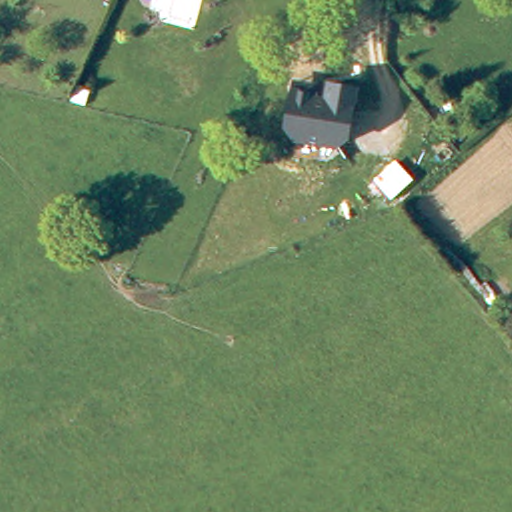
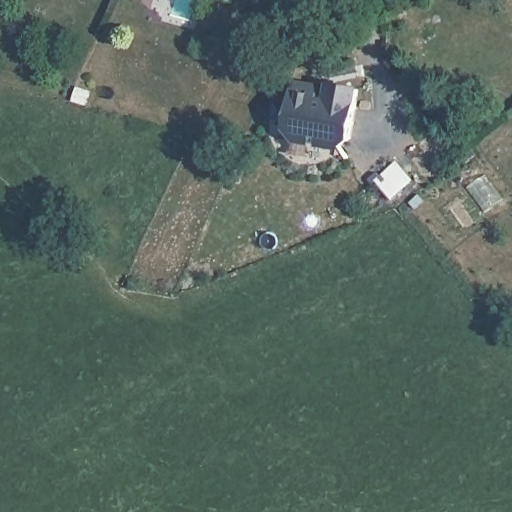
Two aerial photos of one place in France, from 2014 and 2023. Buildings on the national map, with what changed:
unchanged [(326,92),(329,82),(362,88),(352,141),(339,150),(285,142),(295,87),(326,92)]

